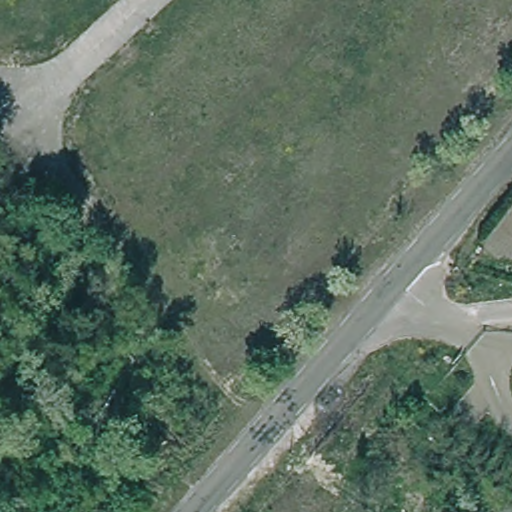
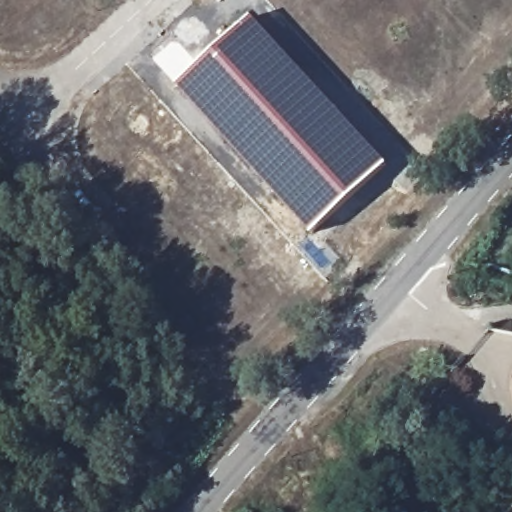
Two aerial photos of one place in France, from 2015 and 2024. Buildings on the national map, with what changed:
new [(312,233),(176,85),(252,16),(387,165),(312,233)]

